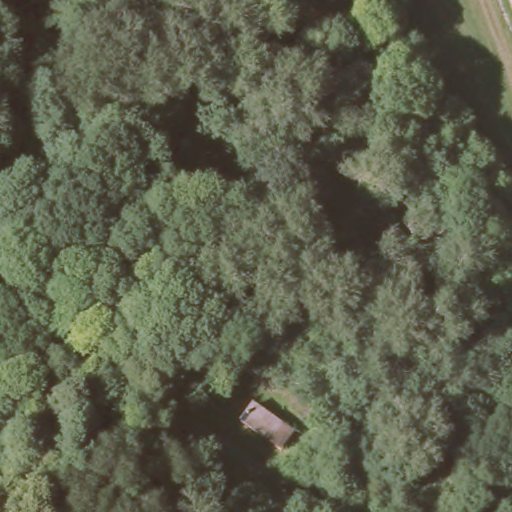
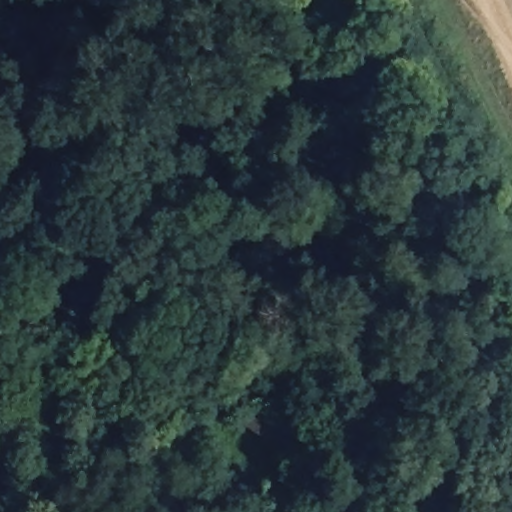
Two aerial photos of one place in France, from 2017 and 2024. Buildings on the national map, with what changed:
unchanged [(293,432),(281,450),(241,420),(253,403),(293,432)]

